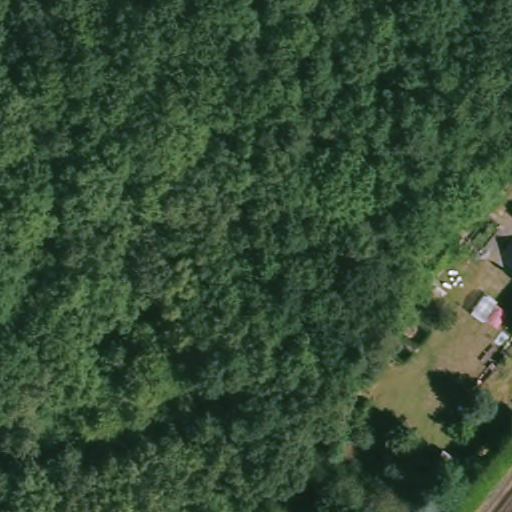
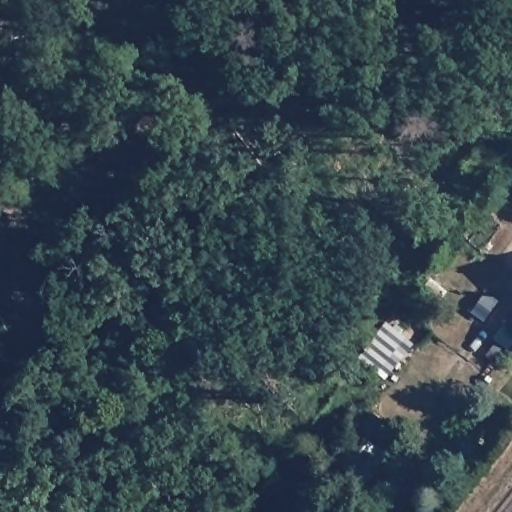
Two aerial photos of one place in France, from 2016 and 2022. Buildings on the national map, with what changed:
[]

